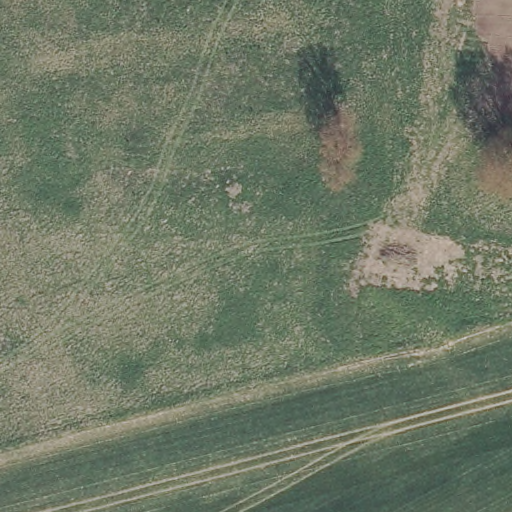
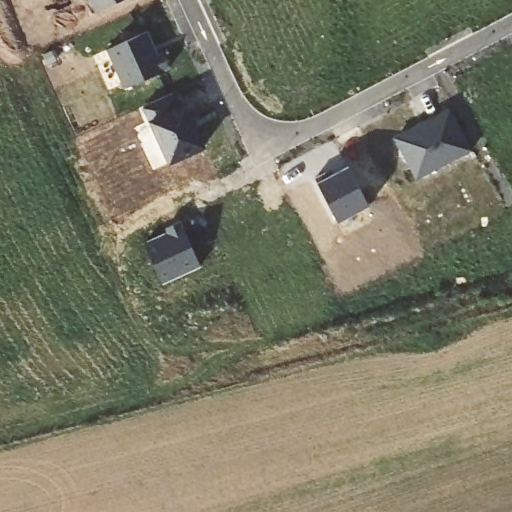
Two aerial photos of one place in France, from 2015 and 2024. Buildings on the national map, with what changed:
new [(90,0),(119,0),(95,11),(90,0)]
new [(125,88),(107,50),(147,31),(158,55),(162,53),(169,68),(125,88)]
new [(180,107),(185,105),(192,121),(196,131),(203,147),(169,162),(144,105),(173,92),(180,107)]
new [(472,149),(416,178),(395,138),(451,109),(472,149)]
new [(338,222),(315,178),(330,171),(332,175),(349,166),(369,206),(338,222)]
new [(180,219),(202,266),(164,284),(144,243),(167,232),(165,227),(180,219)]

